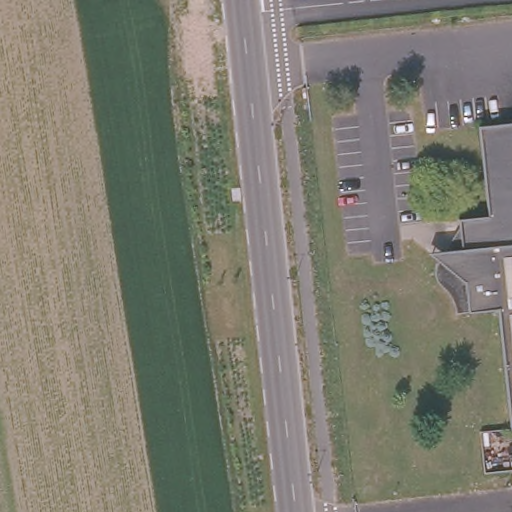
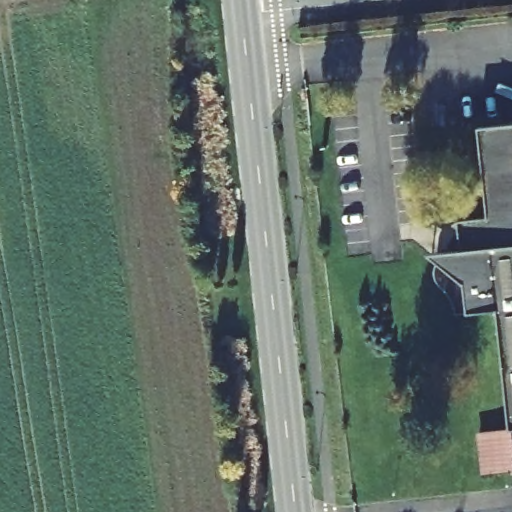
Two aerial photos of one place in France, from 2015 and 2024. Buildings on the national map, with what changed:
unchanged [(497,306),(455,311),(451,292),(438,270),(438,260),(444,254),(460,251),(457,220),(487,216),(478,127),(512,124),(512,426),(510,426),(497,306)]
new [(510,426),(512,426),(512,470),(482,473),(477,432),(510,426)]

